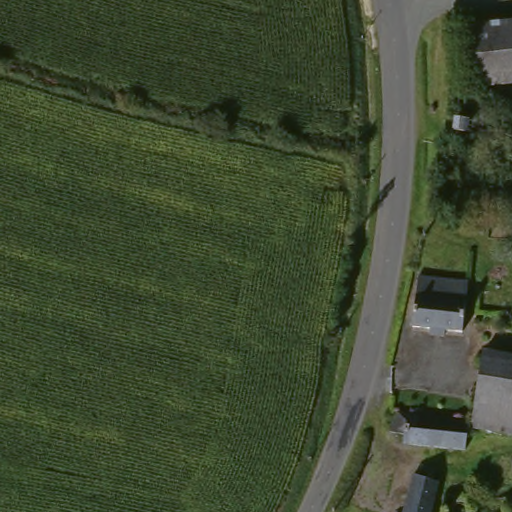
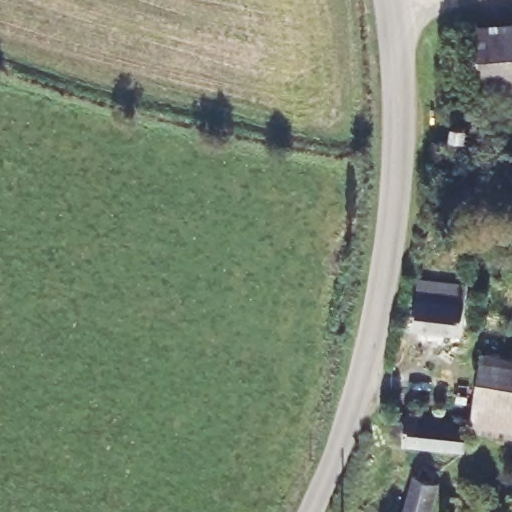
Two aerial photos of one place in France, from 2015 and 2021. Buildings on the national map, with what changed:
unchanged [(466,26),(512,28),(512,93),(464,91),(466,26)]
unchanged [(410,331),(409,290),(464,288),(465,330),(410,331)]
unchanged [(467,429),(474,360),(512,364),(512,443),(466,438),(467,429)]
unchanged [(466,438),(463,452),(463,455),(396,450),(396,440),(381,438),(383,421),(396,422),(398,400),(421,402),(418,424),(467,429),(466,438)]
unchanged [(432,490),(428,502),(424,512),(395,512),(404,480),(411,482),(414,476),(428,481),(426,487),(432,490)]

